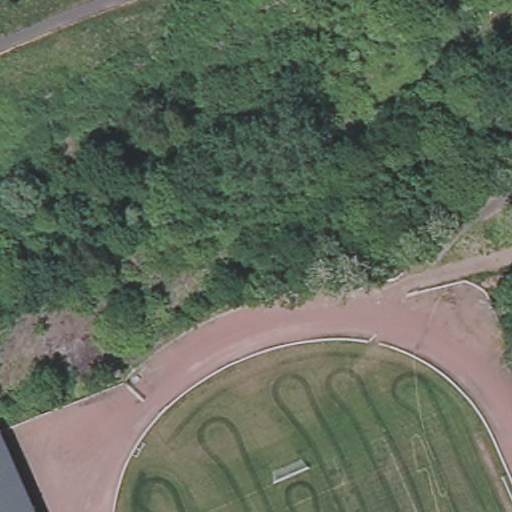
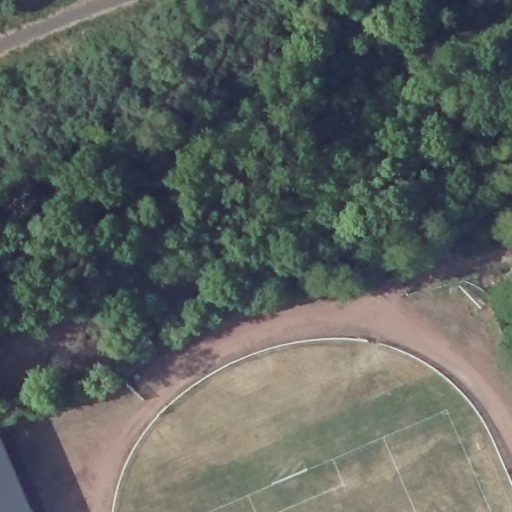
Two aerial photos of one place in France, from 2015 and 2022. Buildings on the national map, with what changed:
unchanged [(0,486),(0,433),(20,478),(0,486)]
unchanged [(25,492),(0,501),(0,486),(20,478),(25,492)]
unchanged [(0,512),(0,501),(25,492),(34,512),(0,512)]

